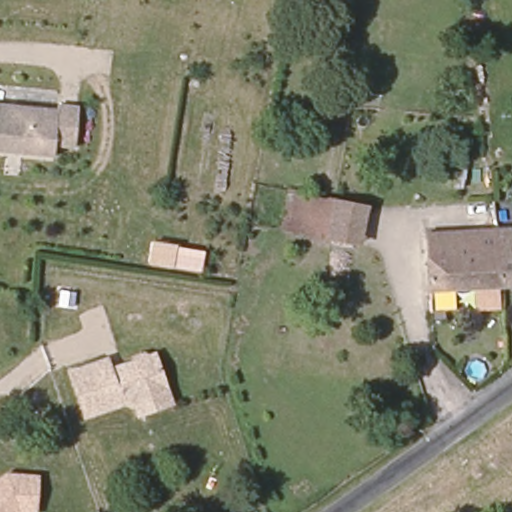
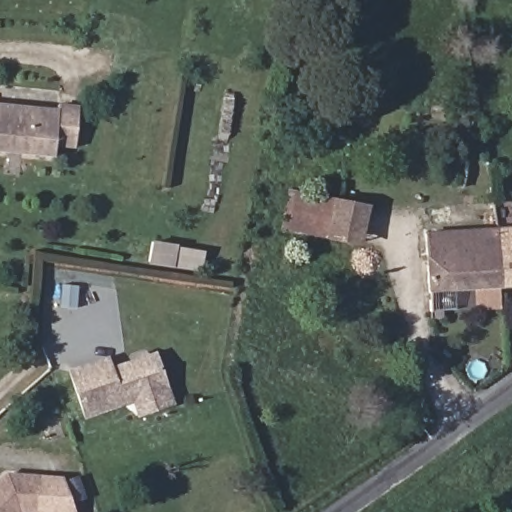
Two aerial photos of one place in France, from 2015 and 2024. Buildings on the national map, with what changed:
unchanged [(54,149),(0,144),(0,98),(61,103),(58,149),(54,149)]
unchanged [(451,185),(455,159),(489,161),(487,187),(451,185)]
unchanged [(367,241),(291,227),(296,192),(374,205),(367,241)]
unchanged [(512,229),(512,283),(500,284),(499,250),(497,230),(512,229)]
unchanged [(499,250),(500,284),(429,289),(425,238),(497,230),(499,250)]
unchanged [(84,419),(66,369),(106,357),(110,367),(154,353),(171,404),(135,418),(131,404),(84,419)]
unchanged [(15,511),(13,512),(0,512),(0,481),(10,474),(37,474),(34,510),(15,511)]
new [(76,512),(34,512),(34,510),(37,474),(63,476),(76,512)]

